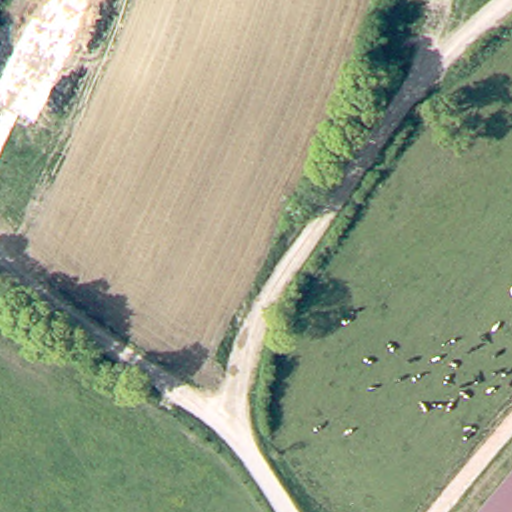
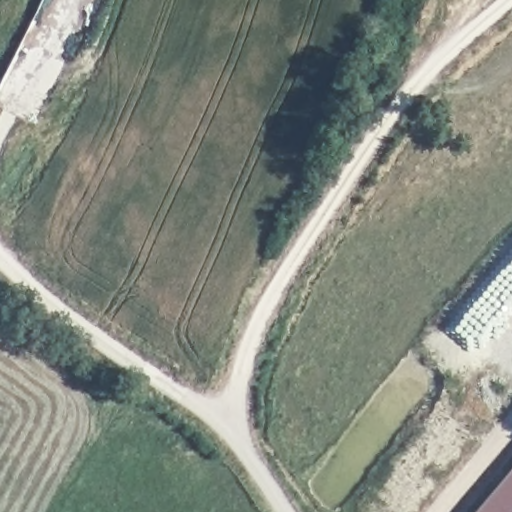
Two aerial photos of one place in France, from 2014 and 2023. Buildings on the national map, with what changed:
unchanged [(512,472),(512,512),(478,512),(512,472)]

